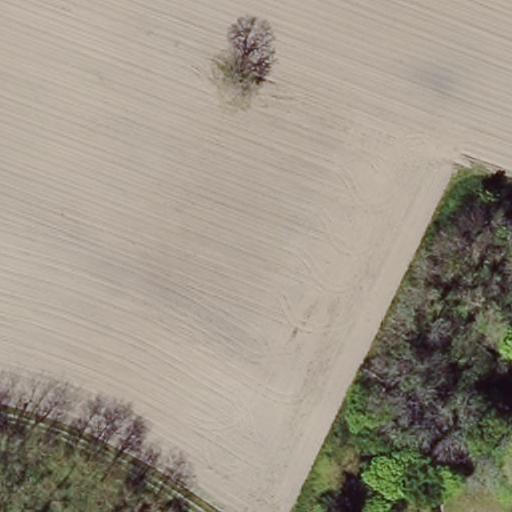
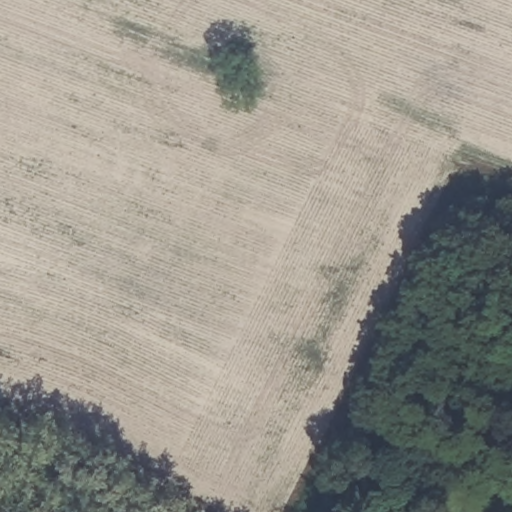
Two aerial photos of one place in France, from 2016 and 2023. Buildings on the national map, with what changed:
[]

